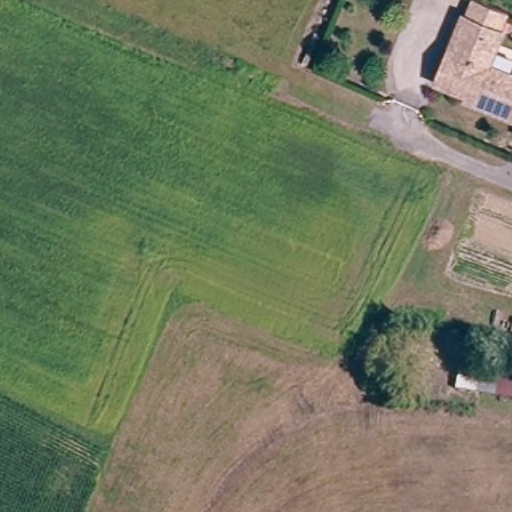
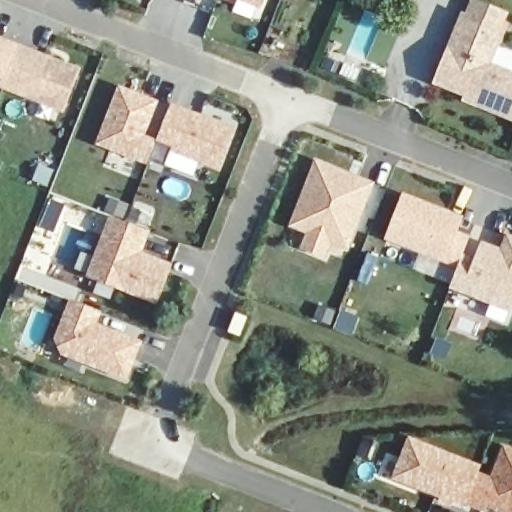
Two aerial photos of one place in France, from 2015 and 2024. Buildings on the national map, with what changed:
new [(263,11),(233,0),(267,0),(263,11)]
unchanged [(458,14),(461,15),(467,0),(483,0),(497,5),(502,7),(494,28),(499,30),(486,66),(512,77),(512,120),(479,110),(483,99),(448,85),(435,80),(445,51),(458,14)]
new [(81,69),(65,114),(0,89),(0,38),(81,69)]
new [(159,102),(147,136),(158,141),(172,104),(238,130),(222,171),(171,152),(166,164),(150,159),(146,165),(96,145),(119,87),(159,102)]
new [(375,185),(349,251),(332,246),(326,260),(299,250),(307,235),(290,227),(316,161),(375,185)]
new [(460,233),(470,236),(465,255),(476,260),(481,241),(502,249),(506,235),(512,238),(512,313),(450,290),(459,266),(385,242),(403,195),(464,219),(460,233)]
new [(150,233),(143,254),(173,265),(157,305),(120,293),(122,289),(86,277),(109,217),(150,233)]
new [(102,312),(97,325),(143,342),(127,381),(64,358),(54,341),(70,300),(102,312)]
new [(480,472),(492,476),(504,447),(512,450),(512,512),(492,512),(485,510),(484,512),(474,512),(454,505),(451,510),(438,505),(440,498),(392,482),(409,438),(482,465),(480,472)]

